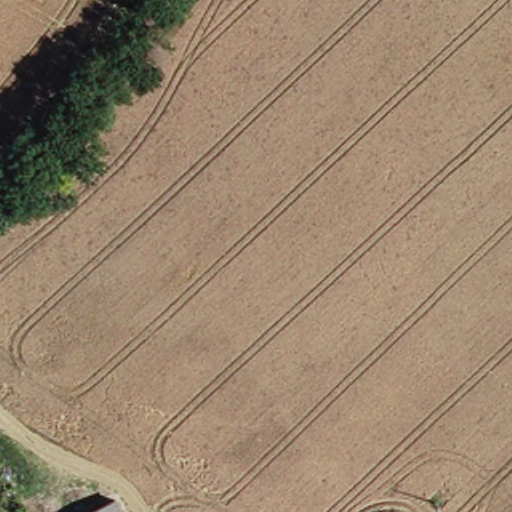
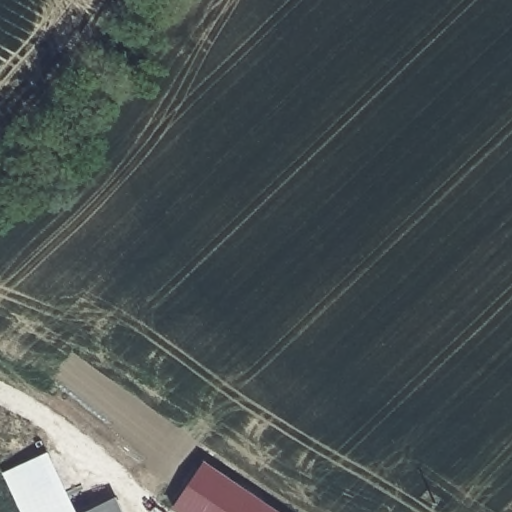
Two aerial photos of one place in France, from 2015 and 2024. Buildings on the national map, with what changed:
new [(74,512),(20,512),(1,473),(48,452),(74,512)]
new [(173,508),(205,460),(280,512),(178,512),(173,508)]
unchanged [(113,505),(116,512),(98,512),(113,505)]

